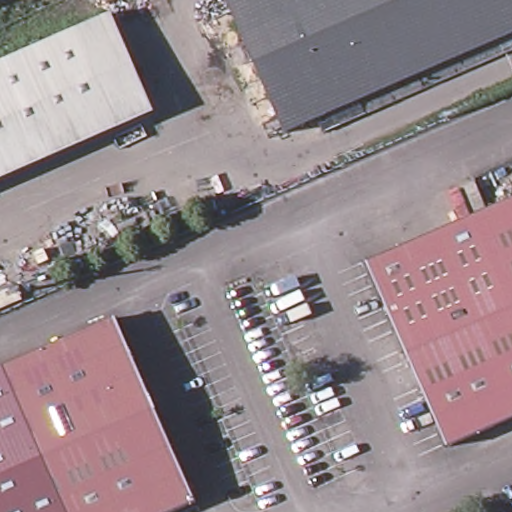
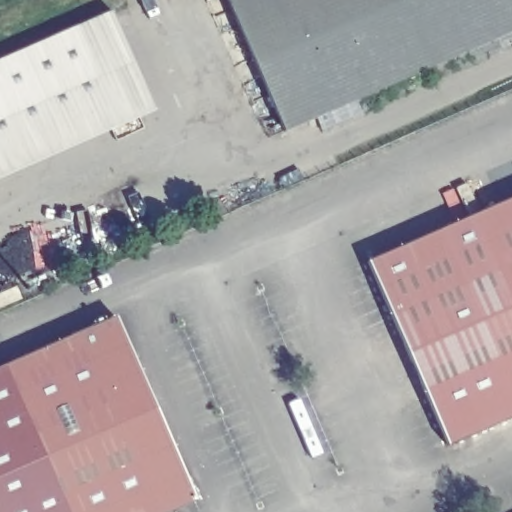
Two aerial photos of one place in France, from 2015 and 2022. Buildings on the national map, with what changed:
unchanged [(225,0),(512,0),(512,33),(357,101),(315,119),(283,133),(225,0)]
unchanged [(111,16),(156,117),(148,121),(144,112),(102,20),(111,16)]
unchanged [(102,20),(144,112),(0,176),(0,65),(102,20)]
unchanged [(148,121),(0,185),(0,176),(144,112),(148,121)]
unchanged [(512,197),(512,417),(447,445),(366,262),(512,197)]
unchanged [(111,326),(191,509),(184,512),(0,512),(0,375),(111,326)]

